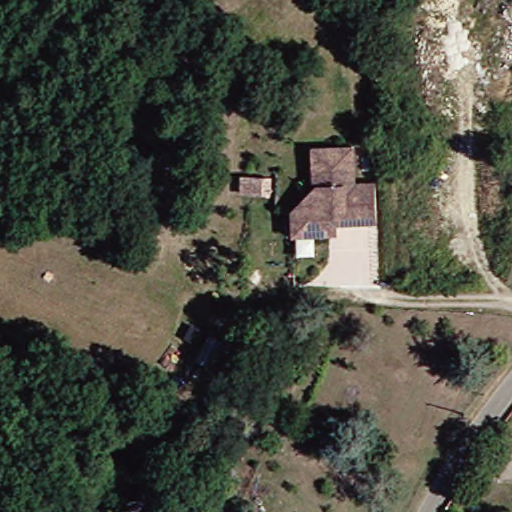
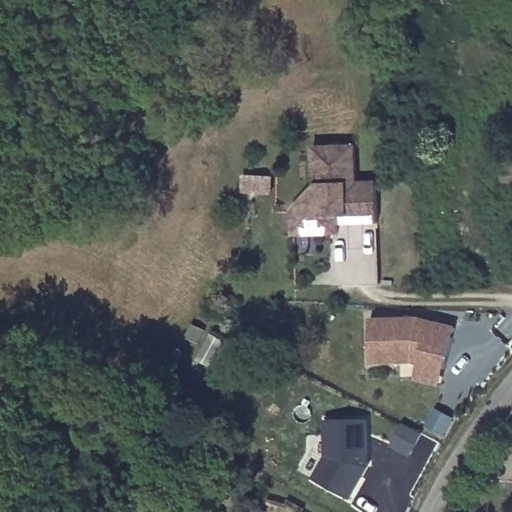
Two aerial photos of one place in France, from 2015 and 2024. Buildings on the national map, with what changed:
unchanged [(332,235),(310,235),(288,236),(287,211),(295,204),(311,185),(309,183),(308,147),(350,145),(351,182),(370,182),(371,182),(372,223),(371,223),(342,224),(332,225),(332,235)]
unchanged [(256,193),(257,177),(270,177),(270,194),(256,193)]
new [(418,317),(456,326),(441,387),(415,381),(419,367),(411,365),(370,365),(369,319),(418,317)]
unchanged [(210,368),(196,360),(210,335),(224,342),(210,368)]
new [(368,420),(370,468),(350,502),(312,479),(324,457),(325,420),(368,420)]
unchanged [(270,505),(262,512),(254,502),(261,495),(270,505)]

